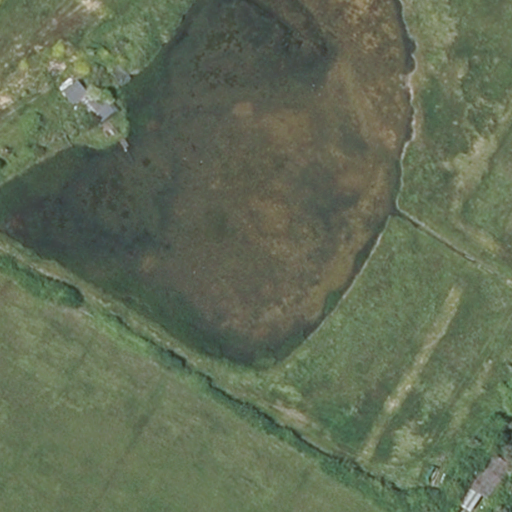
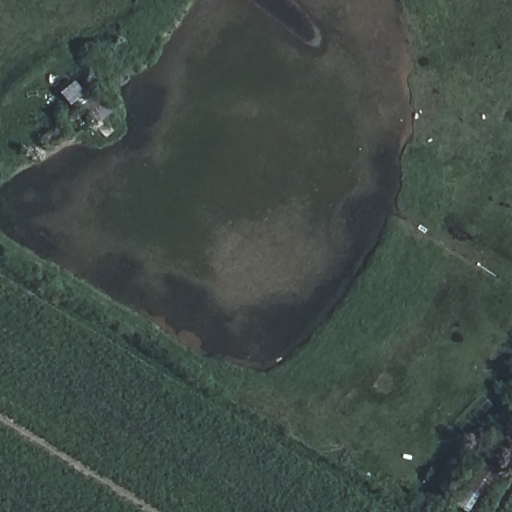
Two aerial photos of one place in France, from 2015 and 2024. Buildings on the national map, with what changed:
unchanged [(96,123),(59,94),(70,80),(85,93),(89,91),(109,110),(96,123)]
unchanged [(502,468),(480,504),(472,499),(464,512),(462,512),(448,502),(478,456),(502,468)]

